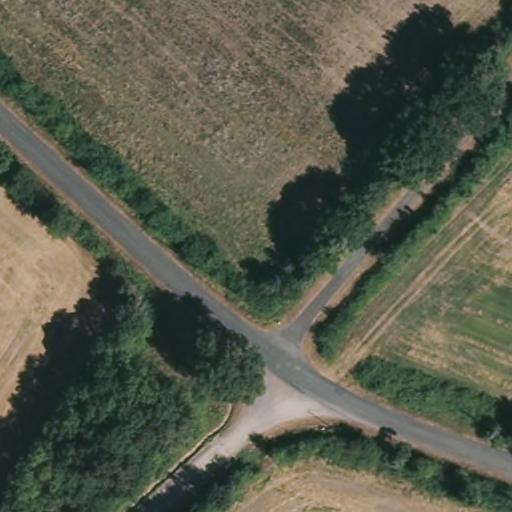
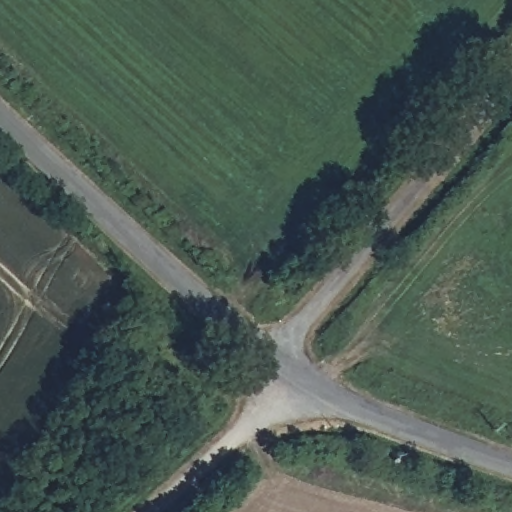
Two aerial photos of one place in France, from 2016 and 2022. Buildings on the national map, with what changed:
[]

